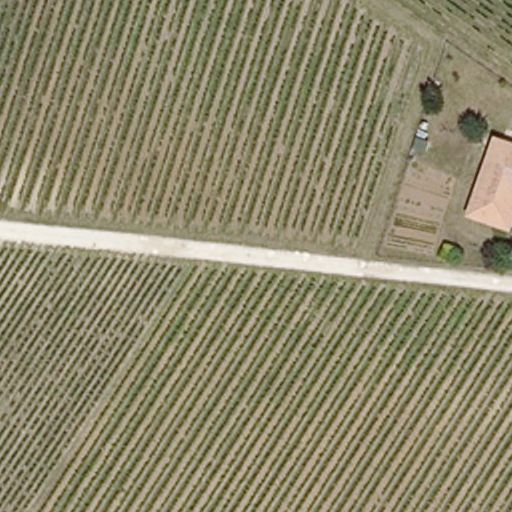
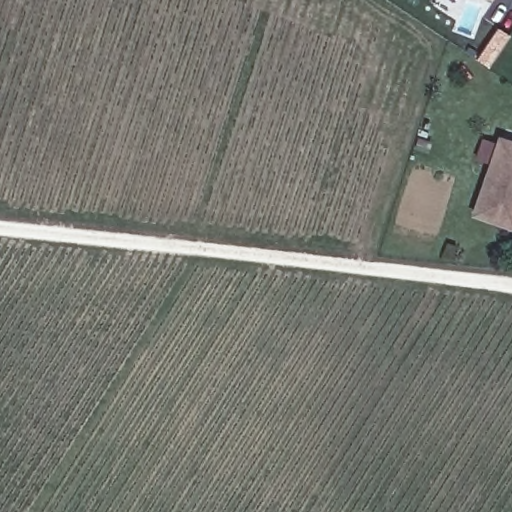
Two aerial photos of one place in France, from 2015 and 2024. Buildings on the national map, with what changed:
unchanged [(502,225),(463,212),(488,140),(512,148),(512,196),(502,225)]

